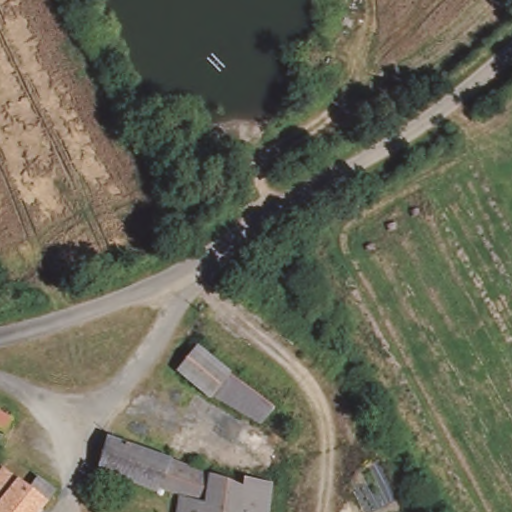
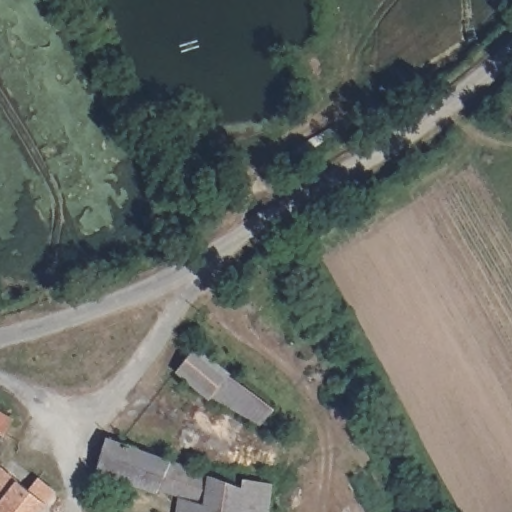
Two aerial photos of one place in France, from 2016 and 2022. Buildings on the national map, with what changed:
unchanged [(202,336),(238,368),(231,375),(271,410),(250,435),(176,371),(202,336)]
unchanged [(100,478),(109,443),(249,485),(277,493),(273,512),(180,512),(183,502),(100,478)]
unchanged [(42,512),(0,512),(0,470),(1,469),(27,492),(37,477),(57,494),(47,506),(42,512)]

